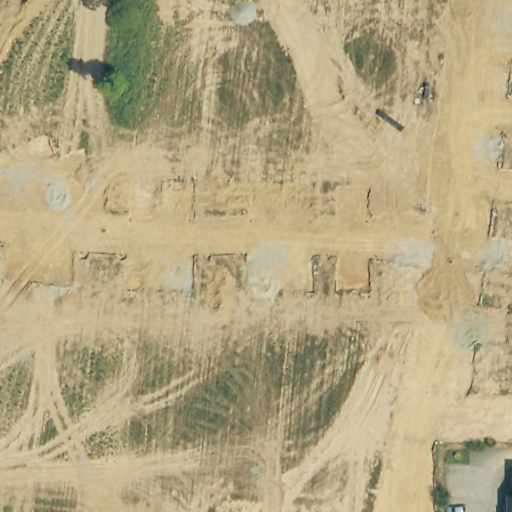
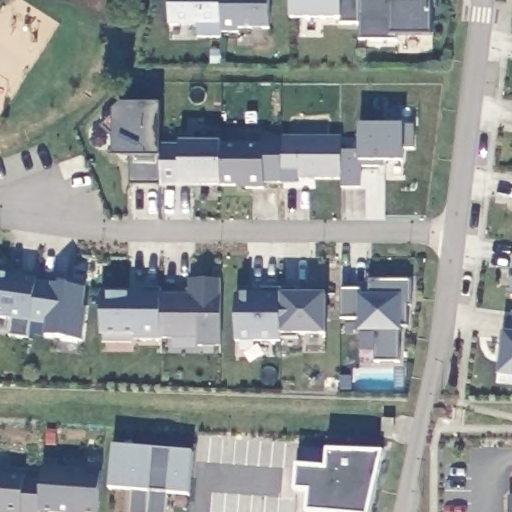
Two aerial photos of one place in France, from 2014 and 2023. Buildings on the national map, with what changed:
unchanged [(237,29),(239,34),(222,34),(222,38),(197,38),(197,25),(169,26),(169,0),(269,0),(269,29),(237,29)]
unchanged [(432,9),(433,37),(397,36),(396,41),(360,40),(360,24),(340,24),(342,19),(291,19),(291,0),(437,0),(437,8),(432,9)]
new [(222,143),(222,145),(264,144),(263,138),(282,139),(282,136),(342,137),(341,152),(360,153),(360,126),(403,126),(413,126),(413,149),(402,149),(403,162),(386,161),(385,168),(361,168),(361,189),(341,189),(341,178),(298,180),(298,184),(281,184),(281,183),(263,184),(264,189),(237,189),(237,185),(221,186),(221,184),(179,185),(131,185),(132,158),(112,158),(114,106),(161,106),(161,146),(179,146),(179,143),(222,143)]
unchanged [(37,283),(52,284),(52,286),(72,289),(73,279),(86,282),(85,290),(82,309),(87,310),(82,343),(42,336),(44,324),(30,322),(27,338),(9,335),(12,319),(0,318),(0,274),(39,279),(37,283)]
new [(161,295),(190,294),(190,280),(221,280),(221,347),(197,347),(197,339),(135,340),(135,334),(101,335),(102,294),(142,293),(141,289),(161,289),(161,295)]
new [(360,290),(360,295),(371,295),(370,280),(410,281),(411,307),(407,307),(407,327),(401,327),(401,333),(398,333),(398,363),(375,362),(375,333),(358,333),(358,319),(342,319),(342,292),(360,290)]
new [(511,297),(512,286),(512,297),(511,297)]
new [(262,294),(262,290),(279,289),(281,297),(326,295),(326,335),(281,336),(281,343),(236,342),(235,294),(262,294)]
unchanged [(503,333),(511,334),(512,321),(512,379),(498,377),(503,333)]
new [(194,452),(190,496),(166,494),(166,512),(131,512),(134,491),(110,489),(114,446),(194,452)]
new [(367,512),(308,512),(309,492),(296,491),(298,467),(298,450),(327,450),(382,453),(367,512)]
new [(42,479),(42,464),(100,469),(97,512),(45,512),(39,512),(42,479)]
new [(42,479),(39,512),(0,512),(0,475),(25,477),(25,481),(42,479)]
unchanged [(511,500),(512,500),(512,512),(511,512),(511,500)]

